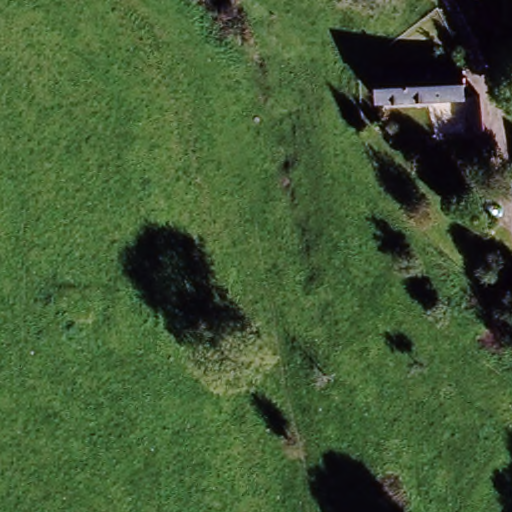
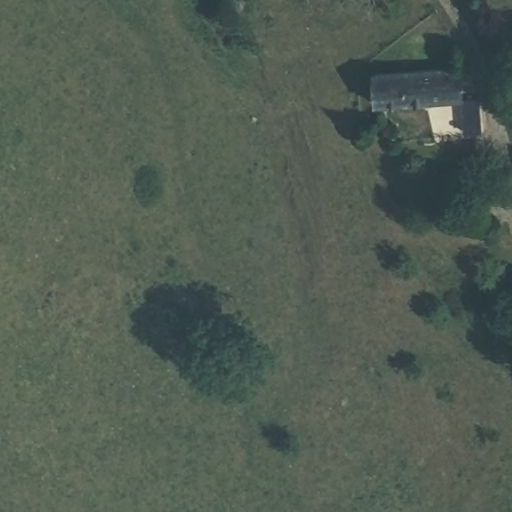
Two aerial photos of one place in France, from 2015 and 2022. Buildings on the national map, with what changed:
unchanged [(372,78),(459,71),(462,101),(385,106),(374,107),(372,78)]
unchanged [(480,132),(464,134),(462,101),(477,99),(480,132)]

